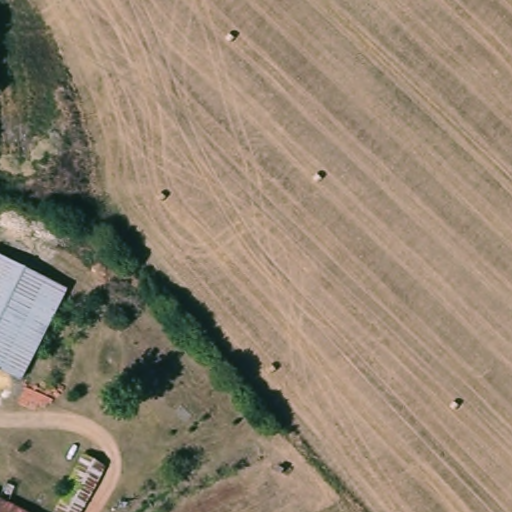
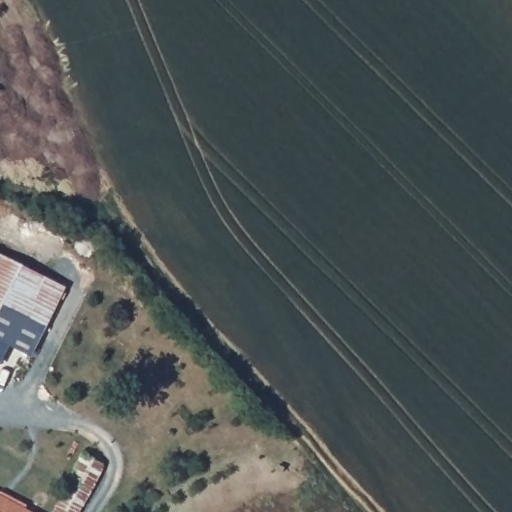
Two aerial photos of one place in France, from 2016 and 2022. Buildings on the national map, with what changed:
unchanged [(66,285),(20,381),(0,370),(0,251),(66,285)]
unchanged [(24,512),(0,512),(0,500),(24,512)]

